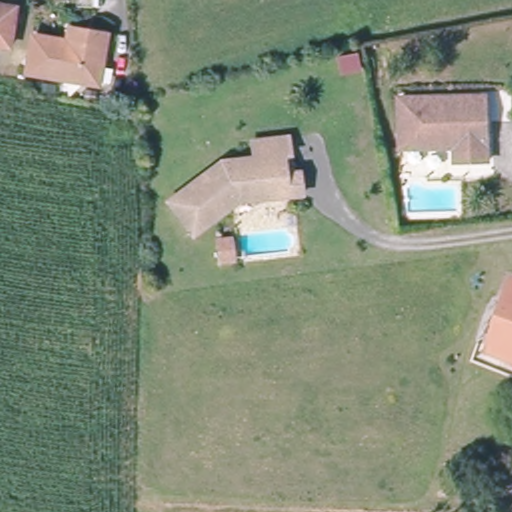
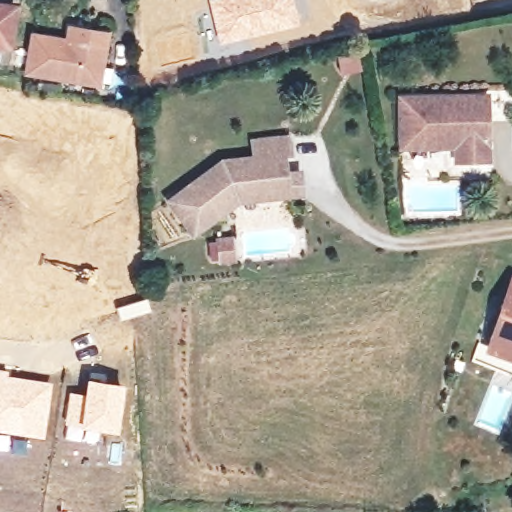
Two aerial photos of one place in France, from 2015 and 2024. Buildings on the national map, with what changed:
new [(219,45),(207,0),(294,0),(299,24),(219,45)]
unchanged [(0,46),(0,3),(16,5),(9,47),(0,46)]
unchanged [(98,82),(26,74),(32,37),(69,40),(71,28),(104,31),(98,82)]
unchanged [(393,96),(482,94),(484,114),(486,156),(453,159),(452,145),(411,146),(411,138),(395,138),(393,96)]
unchanged [(165,196),(221,154),(254,153),(254,131),(290,130),(292,149),(279,162),(279,168),(286,167),(303,165),(307,192),(288,194),(236,199),(195,230),(192,233),(165,196)]
unchanged [(234,258),(218,258),(218,234),(234,234),(234,258)]
unchanged [(510,273),(512,274),(512,361),(481,351),(510,273)]
new [(7,374),(50,382),(42,438),(0,431),(0,369),(8,370),(7,374)]
new [(67,392),(82,393),(86,377),(123,384),(116,431),(74,424),(73,428),(80,429),(78,439),(64,437),(67,392)]

